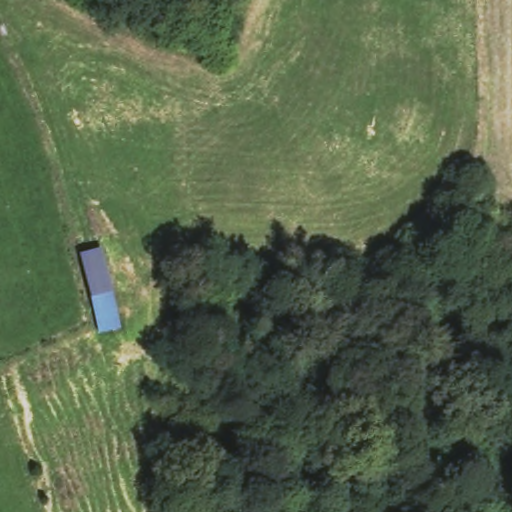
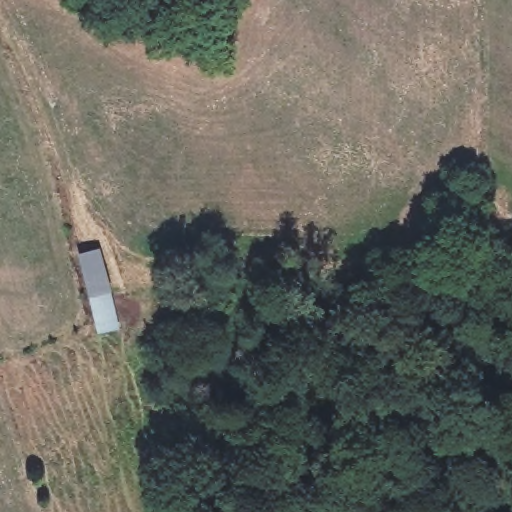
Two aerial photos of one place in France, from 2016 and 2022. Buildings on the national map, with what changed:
unchanged [(87,293),(112,290),(120,325),(96,330),(95,325),(87,293)]

